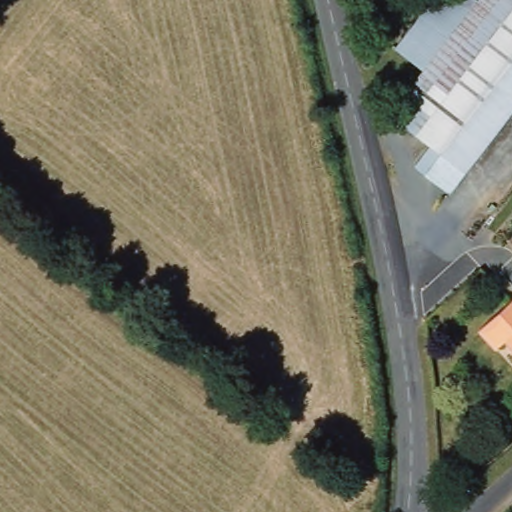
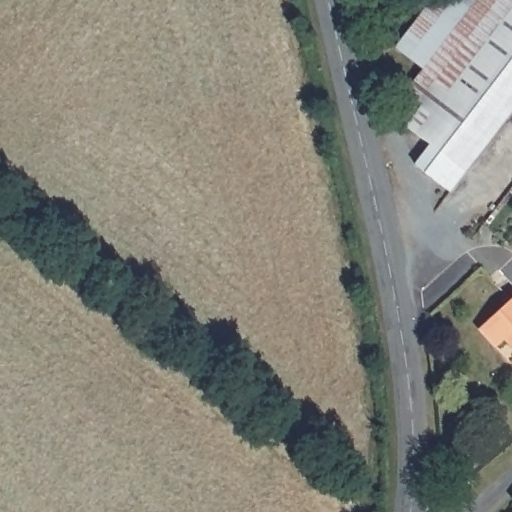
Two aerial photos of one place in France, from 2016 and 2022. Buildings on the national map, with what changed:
unchanged [(427,65),(411,52),(399,43),(433,0),(467,0),(474,5),(427,65)]
unchanged [(419,161),(435,141),(410,122),(426,102),(409,88),(427,65),(474,5),(478,0),(512,0),(512,114),(454,189),(419,161)]
unchanged [(512,341),(506,335),(496,343),(479,325),(512,295),(512,341)]

